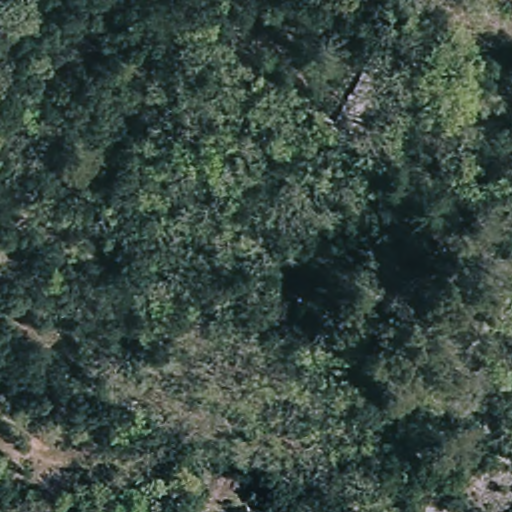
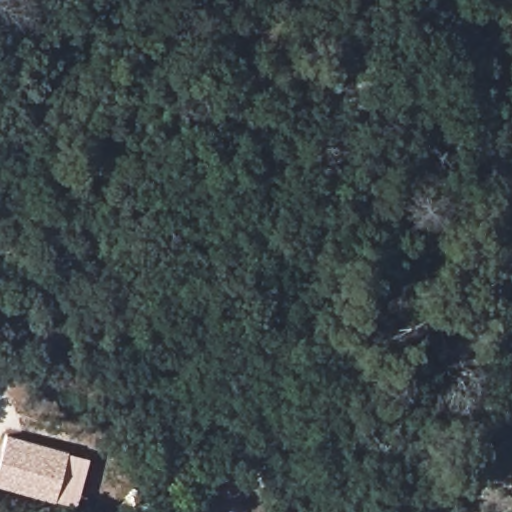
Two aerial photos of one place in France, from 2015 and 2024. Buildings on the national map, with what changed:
new [(68,450),(67,452),(90,458),(77,506),(0,486),(0,455),(5,435),(68,450)]

